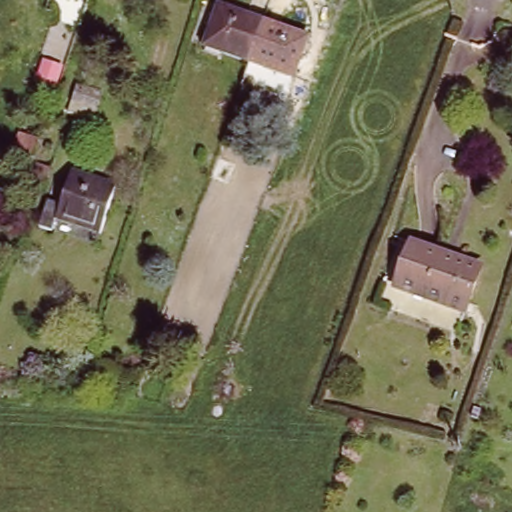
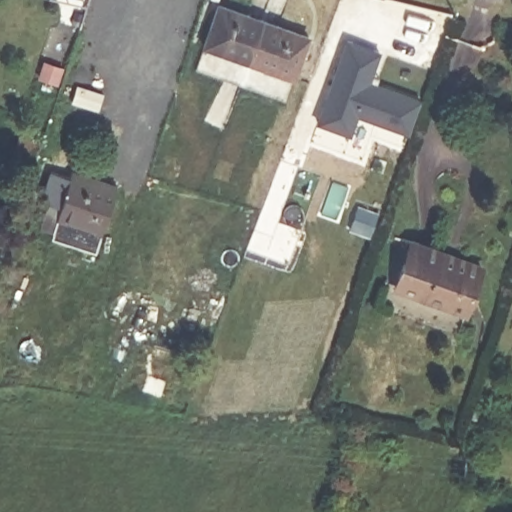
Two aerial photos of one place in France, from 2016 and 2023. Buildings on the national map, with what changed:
demolished [(1,9),(0,8),(0,0),(10,0),(6,10),(1,9)]
unchanged [(223,3),(267,17),(254,59),(208,45),(223,3)]
unchanged [(309,32),(296,72),(254,59),(267,17),(309,32)]
new [(348,39),(381,50),(371,81),(421,98),(409,133),(358,115),(351,135),(317,123),(348,39)]
unchanged [(99,96),(95,112),(69,106),(76,91),(99,96)]
unchanged [(117,201),(100,249),(60,234),(58,244),(41,237),(51,212),(62,216),(74,185),(117,201)]
unchanged [(479,261),(465,308),(394,286),(402,262),(407,265),(414,242),(414,241),(479,261)]

